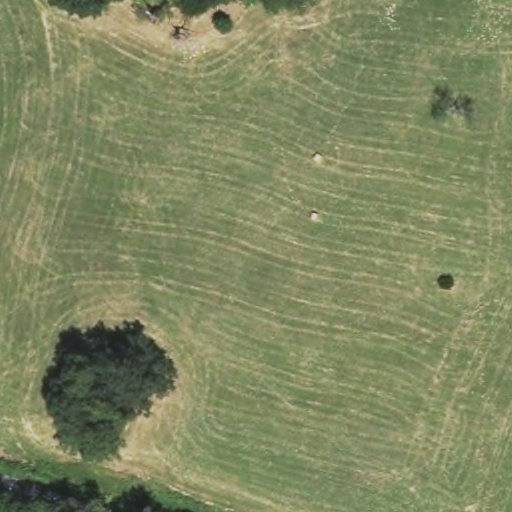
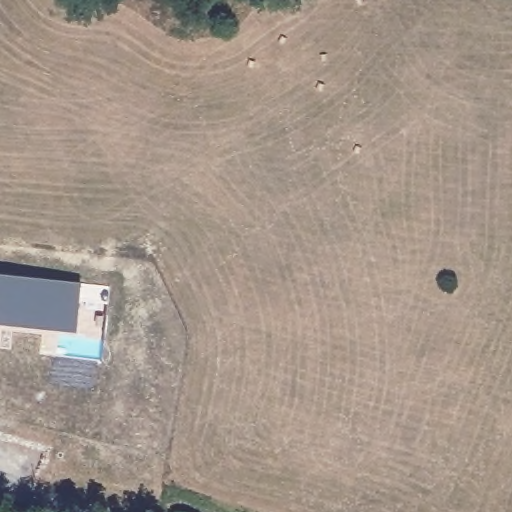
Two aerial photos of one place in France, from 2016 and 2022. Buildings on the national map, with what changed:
new [(0,273),(81,283),(110,287),(108,304),(79,301),(74,330),(0,324),(0,273)]

